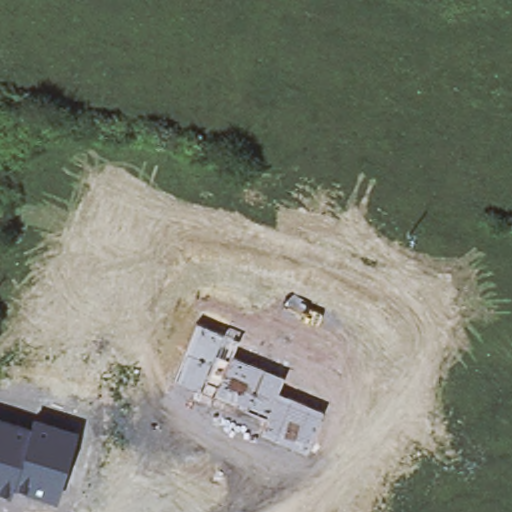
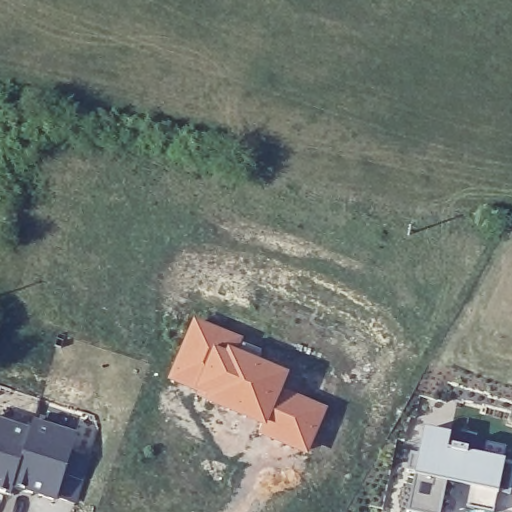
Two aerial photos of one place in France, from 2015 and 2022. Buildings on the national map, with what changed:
unchanged [(194,321),(239,340),(232,355),(285,377),(278,392),(323,410),(307,450),(260,431),(267,416),(169,373),(194,321)]
unchanged [(0,492),(0,417),(31,427),(34,420),(77,433),(55,503),(12,485),(8,495),(0,492)]
new [(415,471),(408,472),(412,455),(418,457),(424,428),(452,433),(448,449),(451,450),(452,446),(468,450),(467,453),(505,460),(512,462),(512,486),(510,495),(498,490),(497,494),(494,512),(491,512),(467,507),(470,487),(446,482),(440,512),(408,512),(415,476),(415,471)]

